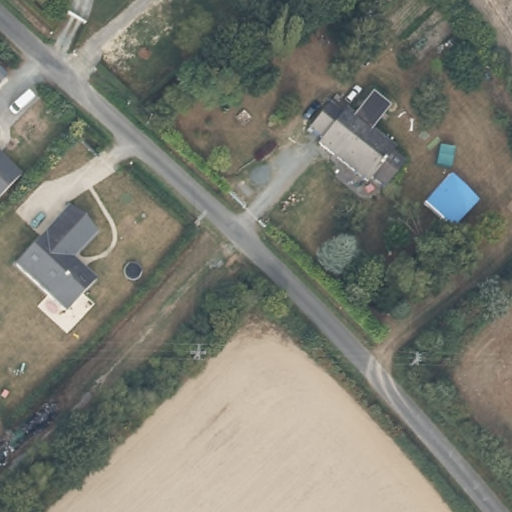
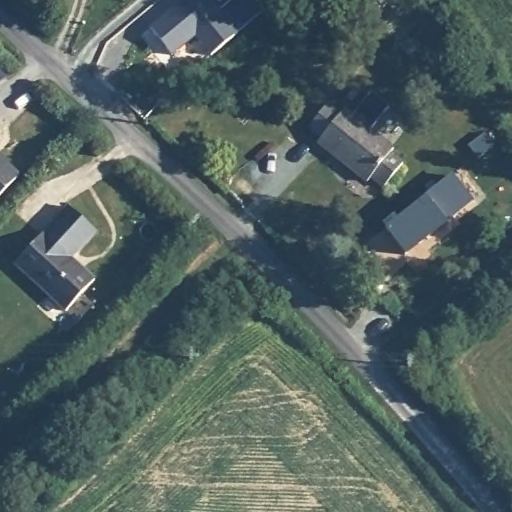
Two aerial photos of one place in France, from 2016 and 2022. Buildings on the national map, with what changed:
new [(187,0),(214,0),(240,32),(214,56),(197,37),(173,56),(153,29),(187,0)]
unchanged [(309,124),(333,102),(360,124),(352,117),(372,92),(390,107),(372,129),(363,121),(398,152),(368,185),(323,145),(327,140),(309,124)]
unchanged [(0,201),(0,163),(19,181),(0,201)]
new [(426,196),(453,172),(475,200),(449,223),(407,257),(386,230),(426,196)]
unchanged [(90,236),(67,263),(91,285),(63,317),(11,272),(62,212),(90,236)]

